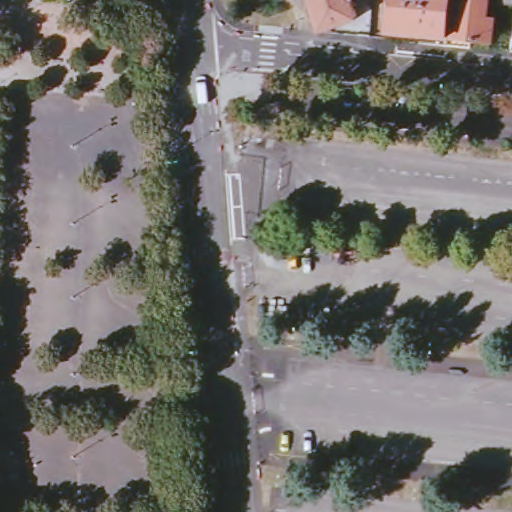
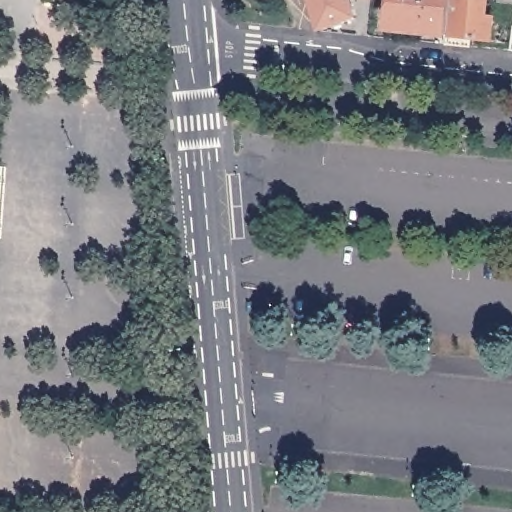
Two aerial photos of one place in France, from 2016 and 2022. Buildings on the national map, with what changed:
unchanged [(357,18),(319,31),(310,0),(351,0),(357,18)]
unchanged [(447,35),(388,29),(390,0),(450,0),(447,35)]
unchanged [(472,14),(495,16),(492,39),(470,37),(469,46),(446,44),(447,35),(450,0),(473,0),(472,14)]
unchanged [(512,1),(502,0),(512,0),(512,1)]

